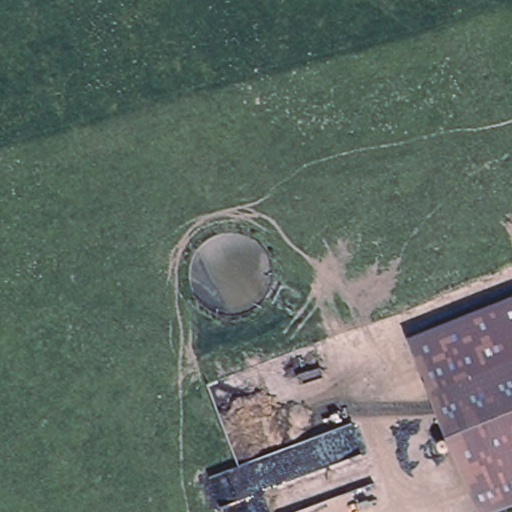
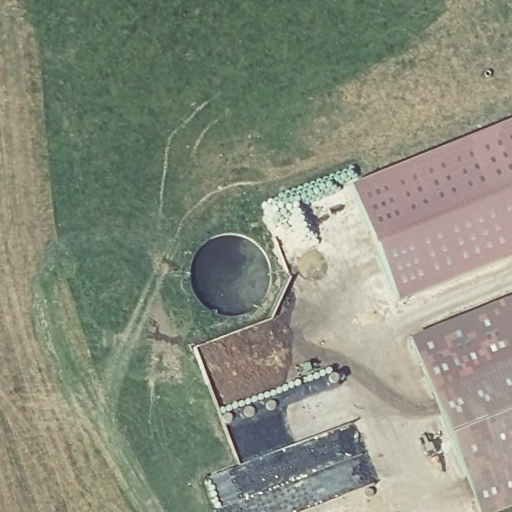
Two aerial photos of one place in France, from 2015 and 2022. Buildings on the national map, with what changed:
new [(396,303),(348,187),(512,121),(512,257),(396,303)]
unchanged [(499,368),(431,394),(411,341),(482,313),(512,301),(512,364),(499,368)]
unchanged [(499,368),(512,364),(512,507),(499,512),(475,512),(473,507),(431,394),(499,368)]

